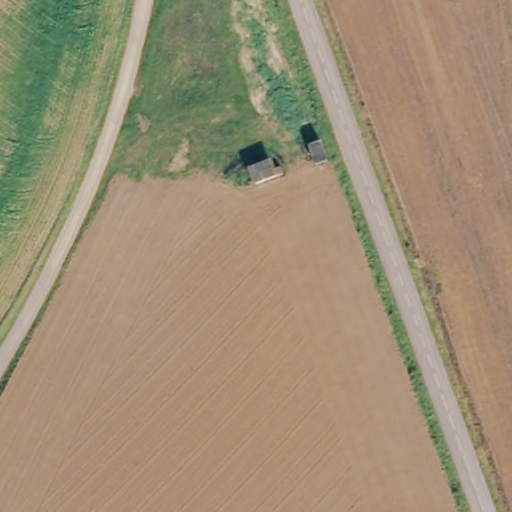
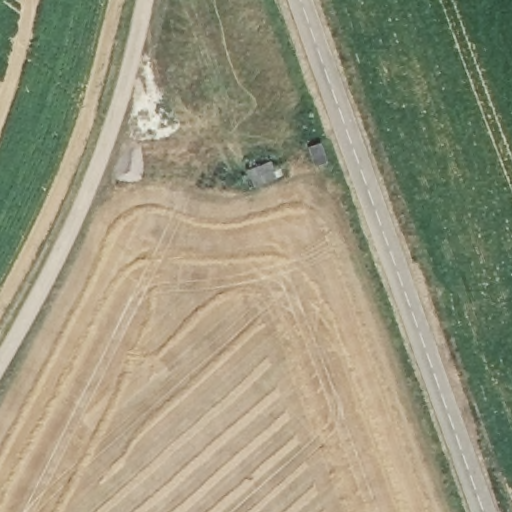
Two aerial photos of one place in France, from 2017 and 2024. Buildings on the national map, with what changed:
unchanged [(314,150),(321,147),(327,145),(334,162),(326,164),(321,167),(314,150)]
unchanged [(253,188),(248,171),(272,161),(280,179),(253,188)]

